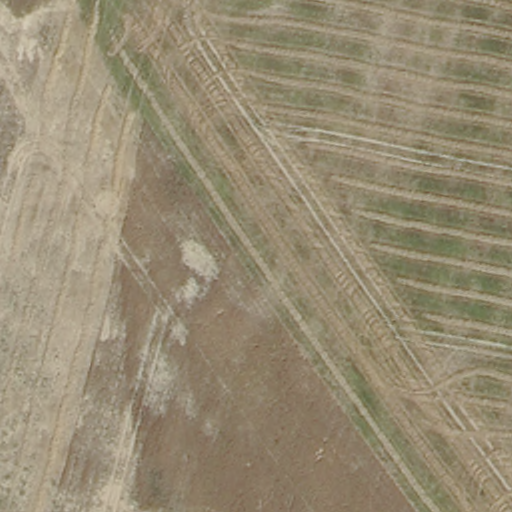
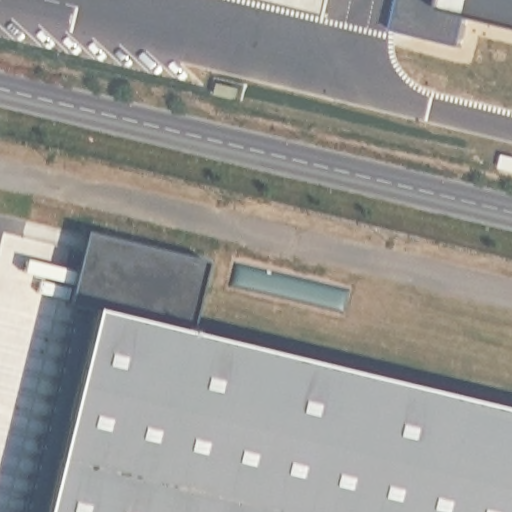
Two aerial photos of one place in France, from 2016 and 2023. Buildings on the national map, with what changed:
new [(512,34),(377,0),(512,0),(512,34)]
new [(512,158),(512,169),(505,167),(507,157),(512,158)]
new [(185,332),(512,409),(512,512),(29,512),(77,306),(61,303),(81,232),(201,260),(185,332)]

